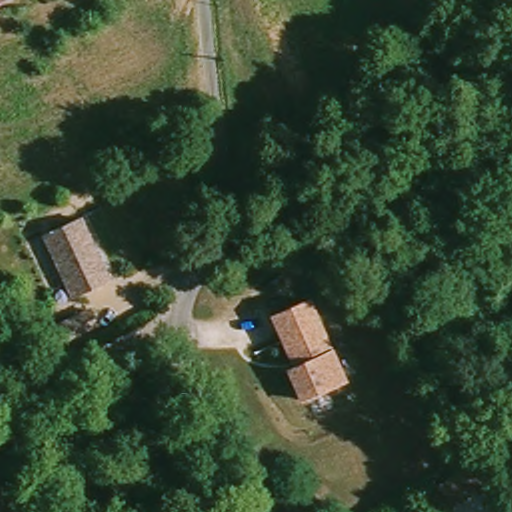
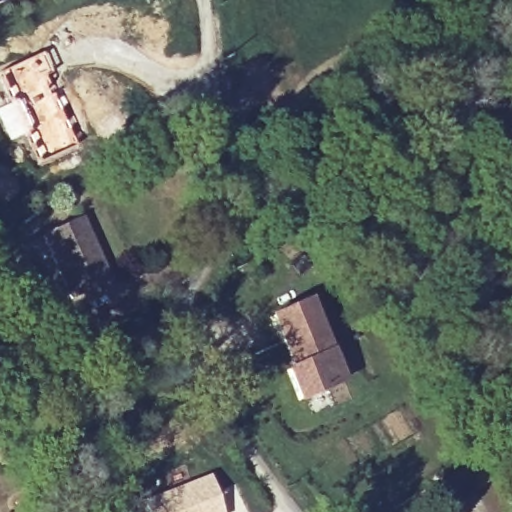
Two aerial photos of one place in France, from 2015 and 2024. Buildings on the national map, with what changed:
unchanged [(0,2),(0,0),(3,0),(3,1),(0,2)]
unchanged [(110,286),(72,303),(43,240),(80,223),(110,286)]
unchanged [(307,300),(343,380),(299,400),(286,371),(293,367),(271,317),(307,300)]
unchanged [(90,310),(99,327),(65,344),(56,328),(90,310)]
unchanged [(442,512),(427,493),(462,466),(476,485),(442,512)]
new [(208,474),(223,512),(142,512),(139,501),(208,474)]
unchanged [(512,494),(512,502),(509,496),(512,494)]

